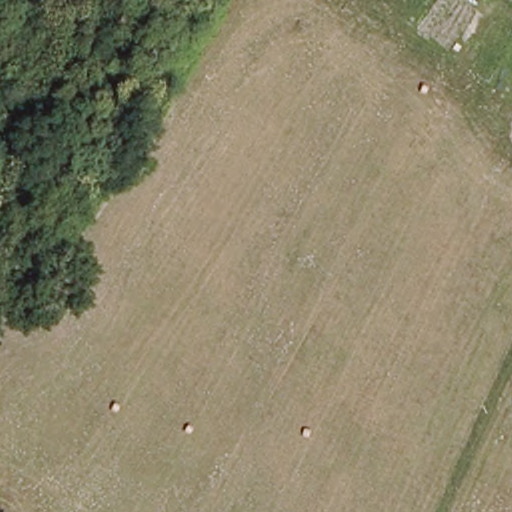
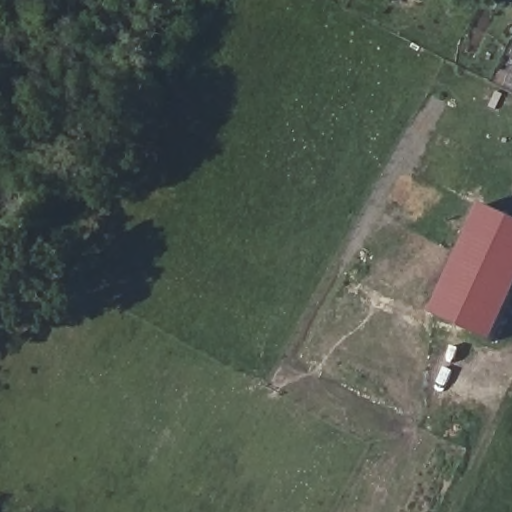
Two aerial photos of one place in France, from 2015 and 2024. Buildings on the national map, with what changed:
new [(485,206),(512,219),(512,303),(494,342),(434,315),(485,206)]

